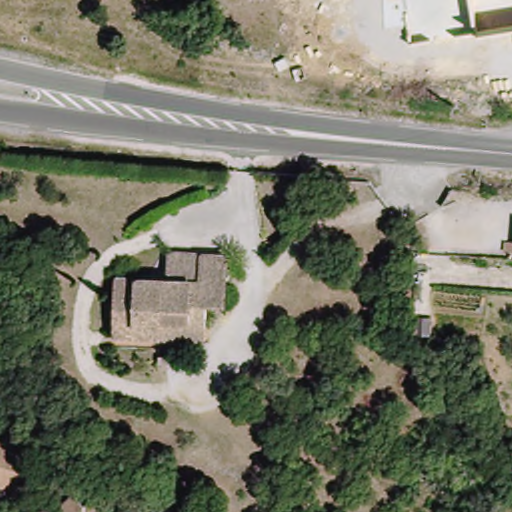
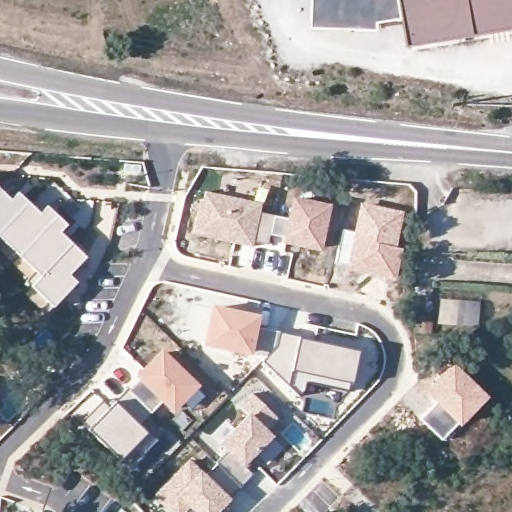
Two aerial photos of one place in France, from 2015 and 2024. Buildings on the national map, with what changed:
new [(407,25),(313,23),(315,0),(512,0),(512,26),(412,43),(407,25)]
new [(270,247),(255,245),(254,247),(190,235),(202,190),(254,200),(258,187),(268,190),(265,203),(262,211),(287,217),(291,196),(331,204),(321,251),(282,244),(282,241),(271,239),(270,247)]
new [(10,200),(18,192),(40,212),(46,205),(67,225),(60,232),(86,257),(70,275),(77,282),(53,308),(31,287),(41,277),(0,238),(0,190),(10,200)]
new [(343,229),(354,232),(361,202),(405,212),(398,247),(405,248),(397,282),(346,271),(347,267),(336,265),(343,229)]
demolished [(225,303),(192,302),(192,307),(190,307),(160,306),(160,316),(160,337),(115,335),(117,277),(168,279),(170,252),(226,255),(225,303)]
new [(480,301),(477,328),(439,325),(440,298),(480,301)]
new [(210,304),(261,314),(251,357),(201,346),(210,304)]
new [(268,355),(252,350),(258,328),(278,332),(299,337),(291,372),(306,376),(306,379),(303,390),(300,395),(262,362),(274,348),(268,355)]
new [(299,337),(359,350),(350,389),(306,379),(306,376),(291,372),(299,337)]
new [(160,347),(200,386),(198,389),(185,403),(173,415),(161,404),(133,377),(160,347)]
new [(420,389),(453,361),(489,397),(458,427),(441,441),(420,419),(434,404),(420,389)]
new [(127,389),(130,390),(138,382),(161,404),(141,425),(115,401),(127,389)]
new [(187,512),(165,512),(152,497),(190,459),(207,475),(227,452),(218,443),(246,415),(234,403),(249,390),(278,420),(268,431),(274,437),(244,467),(251,474),(230,496),(231,498),(218,512),(191,512),(189,511),(187,512)]
new [(108,405),(115,400),(141,425),(150,434),(121,461),(85,428),(108,405)]
demolished [(4,438),(26,445),(15,485),(0,481),(0,437),(4,438)]
demolished [(84,512),(50,512),(72,494),(83,507),(84,512)]

